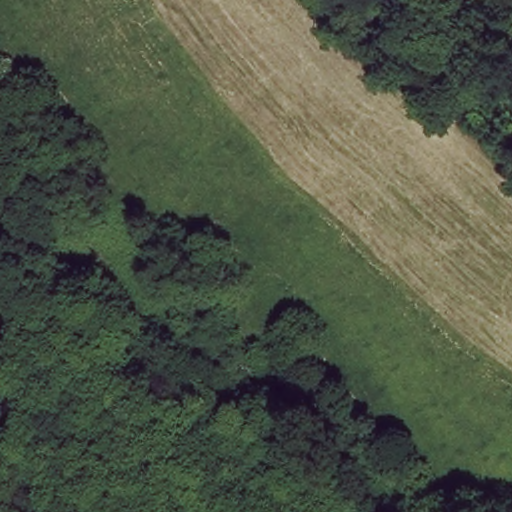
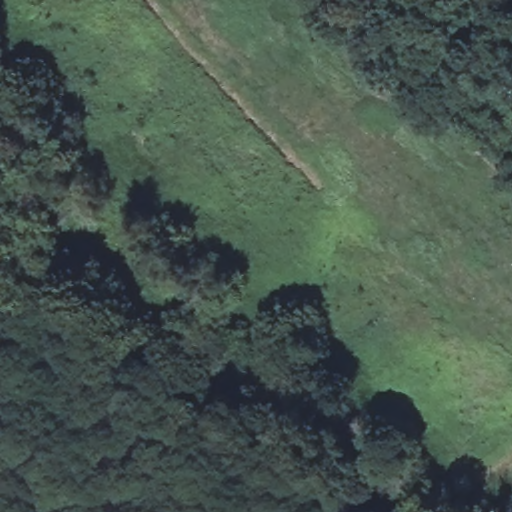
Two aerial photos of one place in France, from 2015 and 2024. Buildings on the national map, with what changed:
[]

